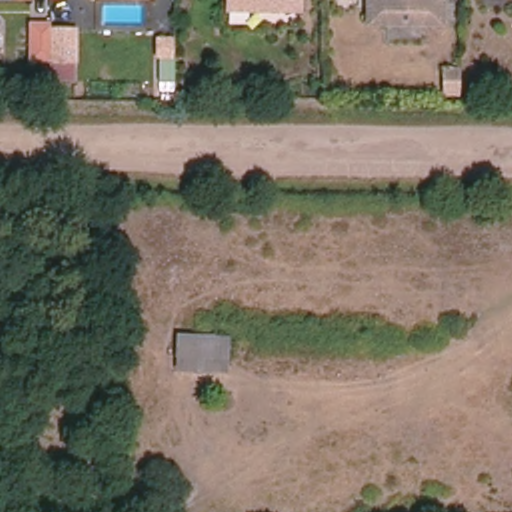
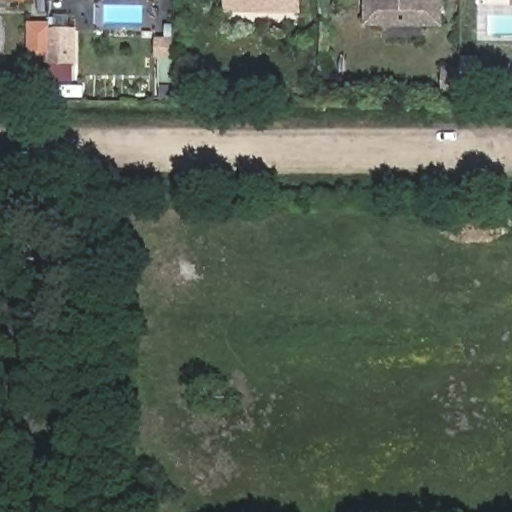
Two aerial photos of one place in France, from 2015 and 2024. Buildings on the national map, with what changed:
unchanged [(294,8),(224,7),(224,0),(294,0),(294,8)]
unchanged [(442,18),(369,17),(369,0),(442,0),(442,18)]
unchanged [(31,28),(56,28),(56,59),(31,58),(31,28)]
unchanged [(457,78),(456,94),(441,94),(442,74),(457,74),(457,78)]
demolished [(231,335),(229,375),(177,373),(179,334),(231,335)]

